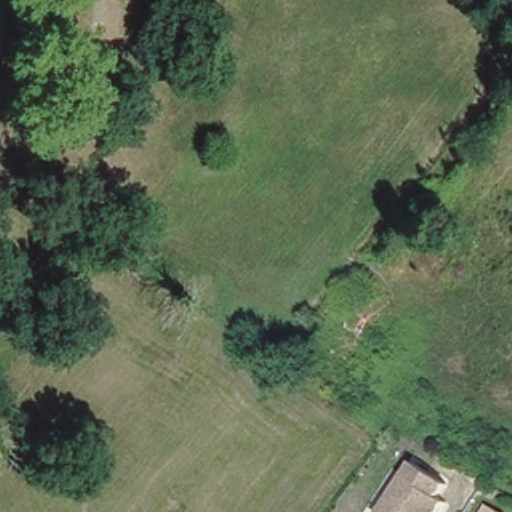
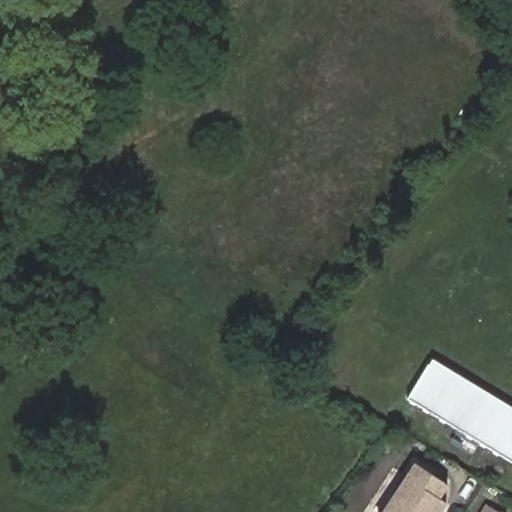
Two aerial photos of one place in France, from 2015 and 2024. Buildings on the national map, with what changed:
new [(409,397),(433,359),(512,406),(512,460),(409,397)]
unchanged [(417,462),(450,483),(441,497),(448,502),(442,512),(384,512),(417,462)]
unchanged [(496,506),(506,512),(492,512),(496,506)]

